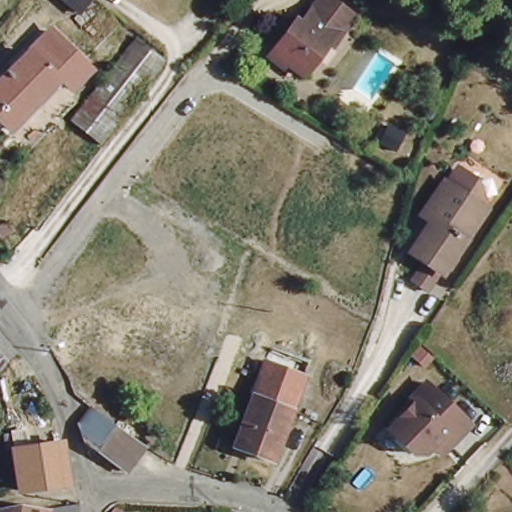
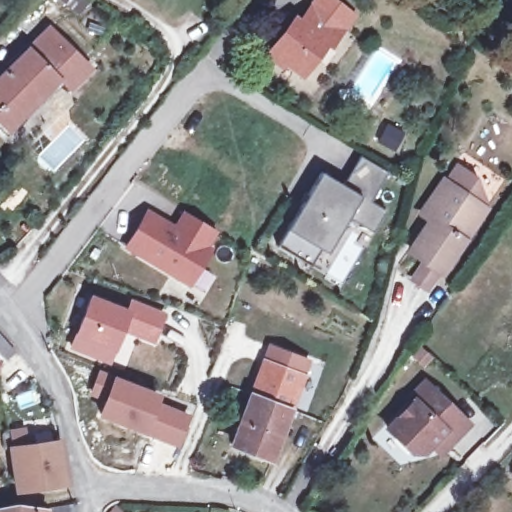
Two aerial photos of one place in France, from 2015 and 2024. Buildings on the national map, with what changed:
unchanged [(308,75),(275,50),(300,18),(305,22),(317,5),(321,0),(336,0),(358,16),(349,29),(335,47),(332,44),(308,75)]
demolished [(94,137),(66,114),(130,32),(158,55),(94,137)]
unchanged [(0,133),(0,74),(35,38),(74,77),(55,97),(45,87),(0,133)]
new [(303,260),(278,245),(323,172),(345,185),(362,156),(390,173),(372,202),(387,211),(374,233),(343,214),(322,249),(312,266),(303,260)]
unchanged [(476,173),(489,200),(444,274),(439,272),(426,290),(412,276),(420,260),(407,248),(426,217),(417,212),(440,172),(449,178),(457,160),(476,173)]
new [(137,230),(148,212),(175,229),(186,211),(216,229),(205,247),(210,249),(190,283),(127,247),(137,230)]
new [(74,336),(90,293),(130,307),(134,299),(167,312),(155,345),(122,334),(115,351),(110,366),(70,350),(74,336)]
demolished [(171,346),(160,375),(54,335),(72,307),(125,328),(171,346)]
new [(14,350),(5,361),(0,370),(0,334),(14,350)]
unchanged [(264,361),(302,375),(289,409),(252,395),(264,361)]
new [(162,393),(159,401),(190,414),(177,447),(99,415),(104,401),(90,395),(100,370),(162,393)]
unchanged [(438,443),(433,449),(421,448),(398,424),(426,396),(423,393),(437,379),(445,386),(479,420),(458,441),(447,452),(438,443)]
unchanged [(289,409),(270,459),(232,444),(252,395),(289,409)]
demolished [(124,469),(82,438),(79,421),(89,405),(144,444),(124,469)]
unchanged [(18,489),(17,478),(13,447),(60,441),(65,483),(18,489)]
unchanged [(57,509),(67,507),(67,512),(42,512),(57,509)]

